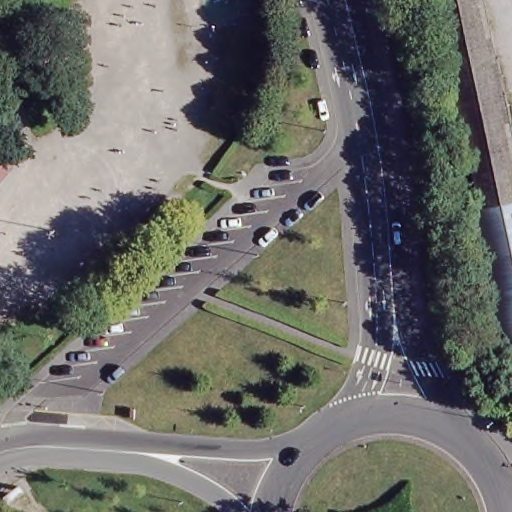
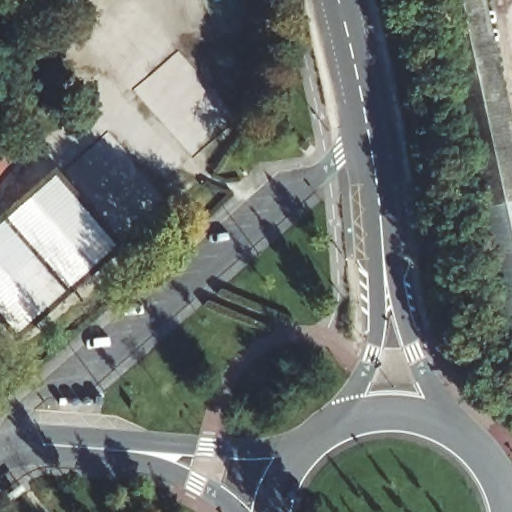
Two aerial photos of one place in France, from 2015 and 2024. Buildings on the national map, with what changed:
unchanged [(512,138),(512,362),(499,337),(443,35),(448,34),(434,0),(479,0),(486,19),(512,138)]
unchanged [(10,160),(0,173),(0,151),(10,160)]
new [(15,343),(0,325),(0,215),(55,167),(125,247),(44,317),(15,343)]

